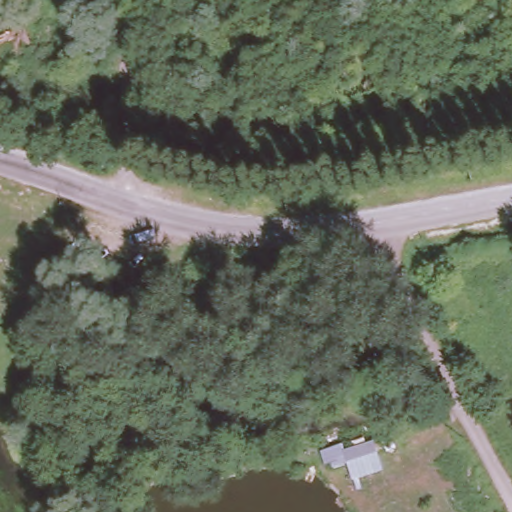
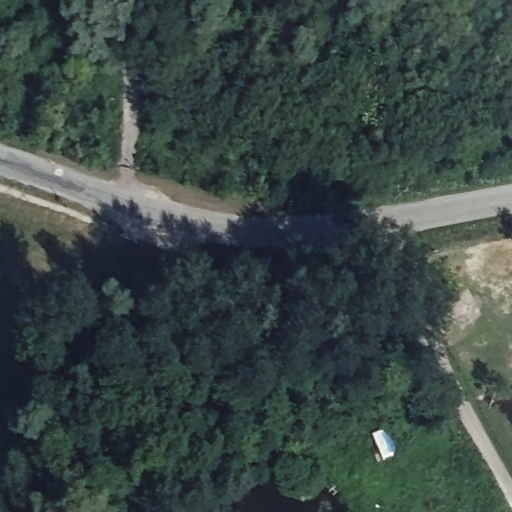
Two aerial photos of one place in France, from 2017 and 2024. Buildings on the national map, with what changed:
unchanged [(352,480),(348,464),(333,469),(332,464),(325,466),(321,452),(365,438),(366,443),(374,441),(384,472),(352,480)]

